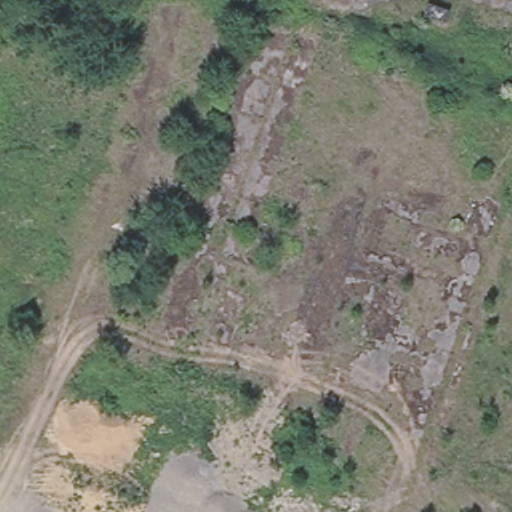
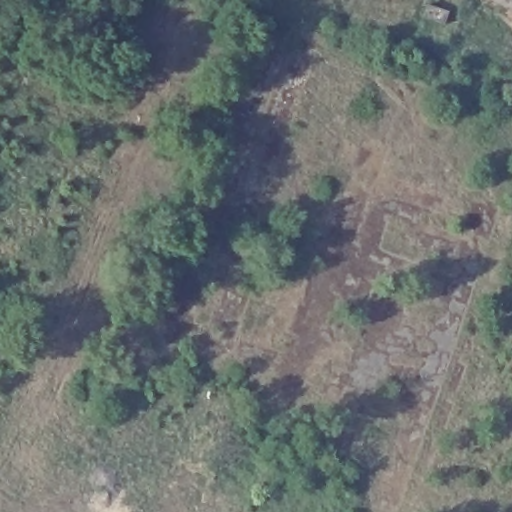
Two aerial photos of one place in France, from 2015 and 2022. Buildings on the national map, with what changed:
unchanged [(444,24),(423,16),(428,4),(448,11),(444,24)]

